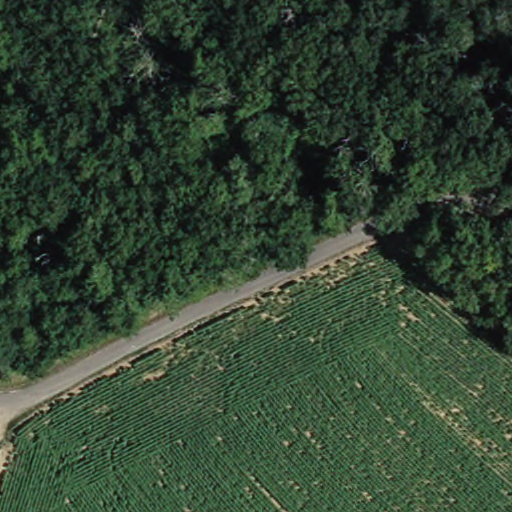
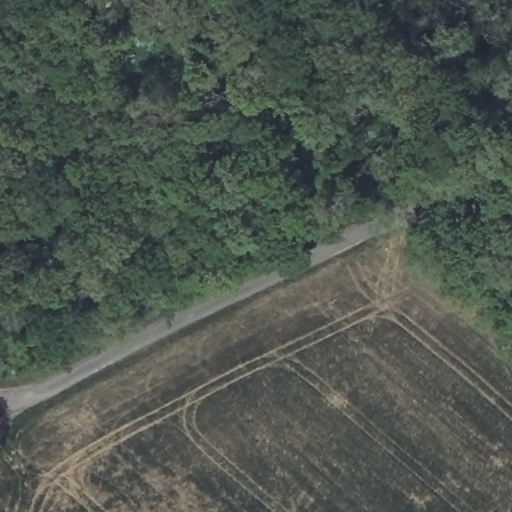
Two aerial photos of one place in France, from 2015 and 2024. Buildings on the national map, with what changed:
unchanged [(487,0),(504,0),(494,9),(487,0)]

